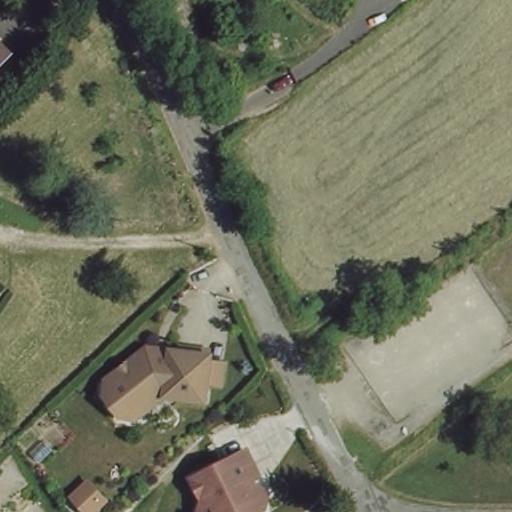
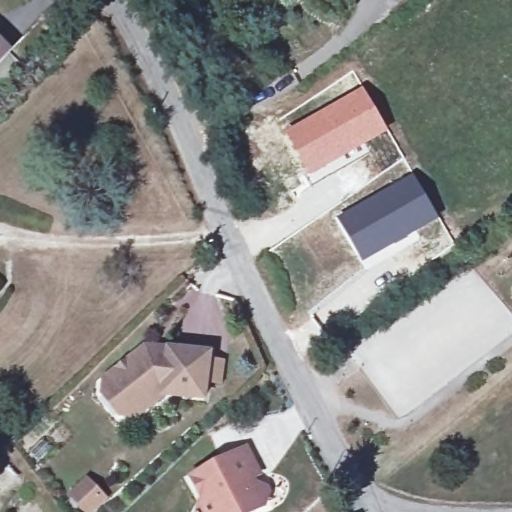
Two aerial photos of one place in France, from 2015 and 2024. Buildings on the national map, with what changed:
unchanged [(0,64),(0,53),(6,59),(0,64)]
new [(316,114),(363,87),(389,131),(310,177),(285,134),(316,114)]
new [(368,197),(412,172),(439,220),(363,265),(336,218),(368,197)]
unchanged [(164,395),(127,419),(96,375),(146,336),(226,350),(223,380),(207,380),(204,400),(164,395)]
unchanged [(193,481),(246,452),(260,478),(251,483),(256,491),(257,490),(258,490),(260,490),(262,490),(263,490),(265,491),(266,492),(267,492),(267,493),(268,493),(268,494),(269,495),(270,496),(261,500),(266,510),(262,512),(202,512),(204,504),(192,482),(193,481)]
unchanged [(88,512),(84,512),(62,489),(82,469),(108,495),(88,512)]

